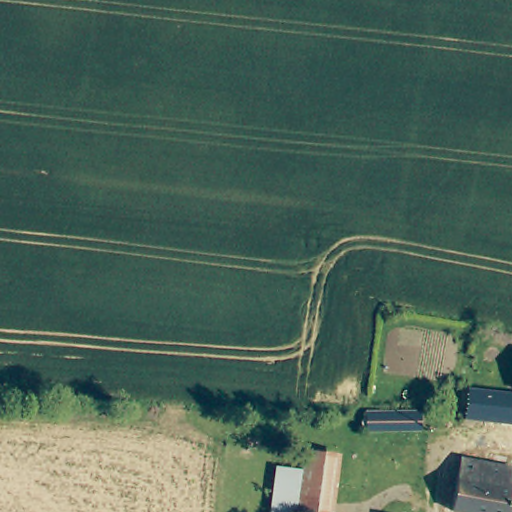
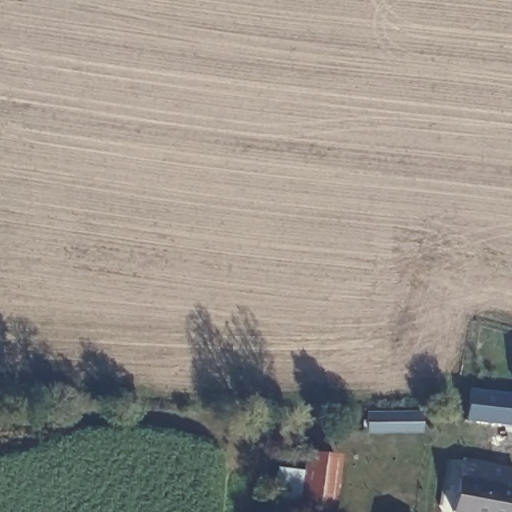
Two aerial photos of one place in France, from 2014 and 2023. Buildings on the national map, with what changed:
unchanged [(472,386),(512,391),(512,427),(465,422),(472,386)]
unchanged [(389,410),(417,411),(423,411),(423,427),(388,425),(388,432),(369,432),(369,427),(369,410),(389,410)]
unchanged [(334,512),(277,512),(269,511),(275,467),(302,471),(305,450),(341,453),(334,512)]
unchanged [(512,505),(511,512),(464,512),(455,511),(464,458),(512,467),(512,505)]

